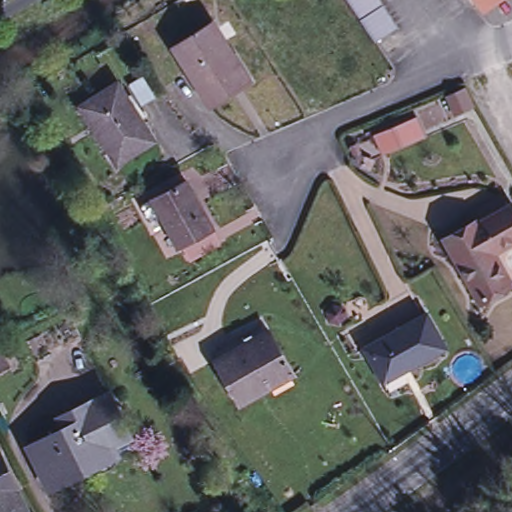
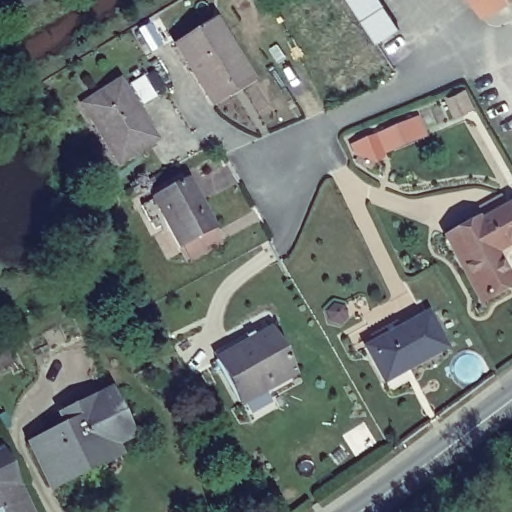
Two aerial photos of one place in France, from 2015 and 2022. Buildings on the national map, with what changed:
unchanged [(385,0),(390,8),(369,23),(361,11),(354,0),(385,0)]
unchanged [(480,0),(495,0),(486,7),(480,0)]
unchanged [(218,25),(254,81),(218,104),(181,49),(218,25)]
unchanged [(118,80),(154,136),(118,159),(82,104),(118,80)]
unchanged [(419,114),(427,133),(386,150),(375,134),(419,114)]
unchanged [(188,177),(213,224),(178,243),(153,195),(188,177)]
unchanged [(477,223),(479,226),(509,208),(512,213),(512,244),(495,254),(512,283),(512,286),(482,303),(447,240),(477,223)]
unchanged [(452,343),(390,378),(371,344),(433,309),(452,343)]
unchanged [(296,371),(242,401),(238,393),(216,357),(270,327),(289,359),(296,371)]
unchanged [(0,340),(5,351),(9,359),(0,364),(0,340)]
unchanged [(90,467),(52,486),(33,447),(69,429),(64,419),(94,404),(108,398),(113,396),(127,426),(132,437),(127,439),(114,445),(86,458),(90,467)]
unchanged [(0,491),(0,454),(1,453),(16,483),(0,491)]
unchanged [(0,491),(16,483),(30,512),(0,512),(0,491)]

